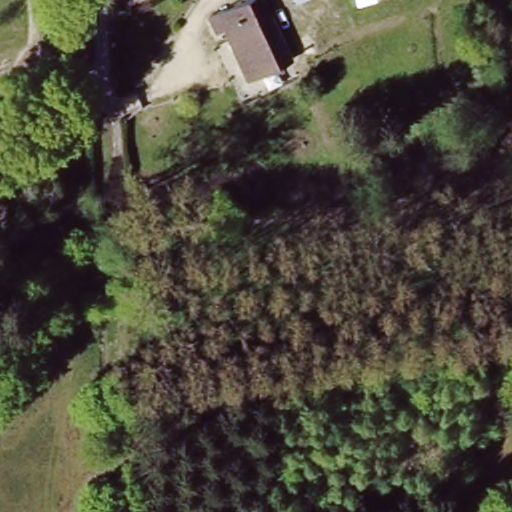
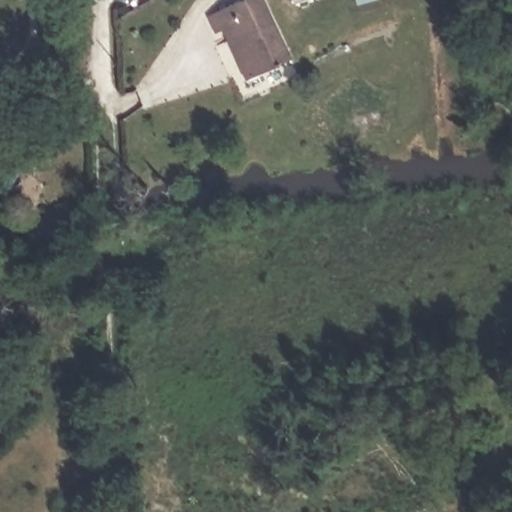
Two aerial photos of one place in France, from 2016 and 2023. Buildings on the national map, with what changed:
unchanged [(211,27),(205,17),(237,0),(264,0),(289,51),(280,64),(253,80),(221,24),(211,27)]

